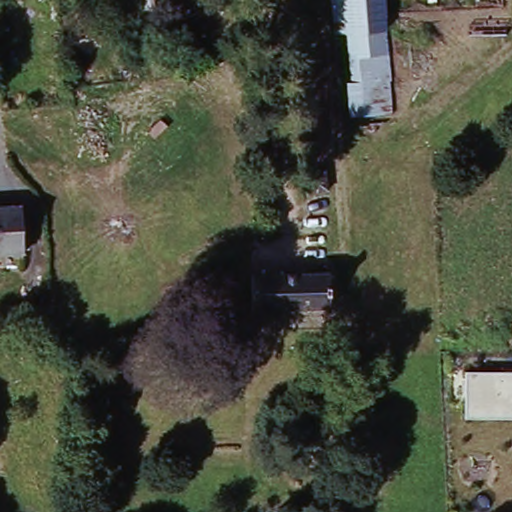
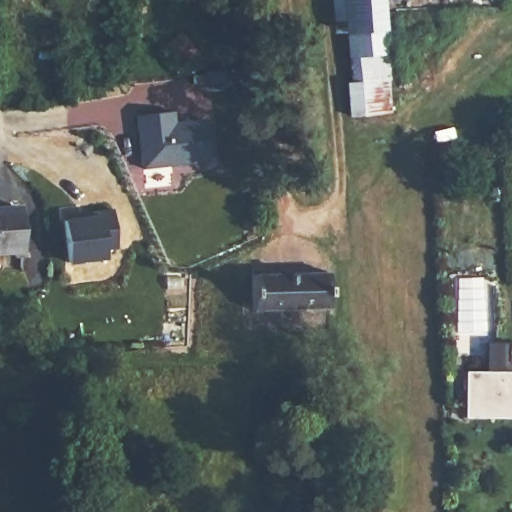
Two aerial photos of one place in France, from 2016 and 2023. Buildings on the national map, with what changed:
unchanged [(382,31),(344,34),(342,0),(380,0),(382,31)]
unchanged [(357,83),(348,82),(344,34),(382,31),(387,114),(359,115),(357,83)]
new [(174,115),(174,125),(205,124),(207,162),(143,169),(137,119),(174,115)]
unchanged [(325,172),(327,192),(307,192),(304,173),(325,172)]
unchanged [(19,252),(0,253),(0,210),(16,209),(19,252)]
new [(80,217),(89,216),(114,213),(119,250),(106,252),(108,260),(69,265),(64,223),(81,221),(80,217)]
unchanged [(329,269),(333,305),(255,308),(253,273),(329,269)]
unchanged [(466,370),(512,371),(512,416),(467,416),(466,370)]

